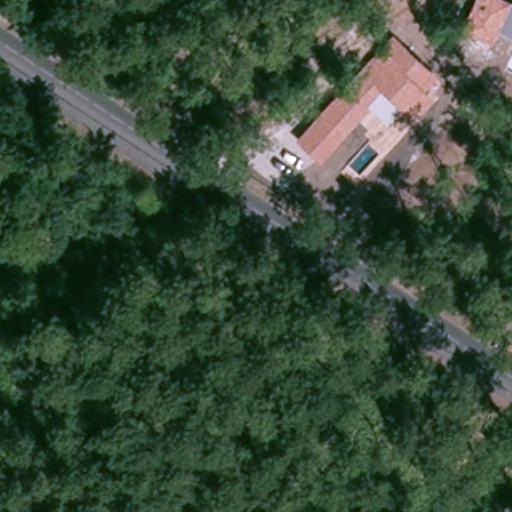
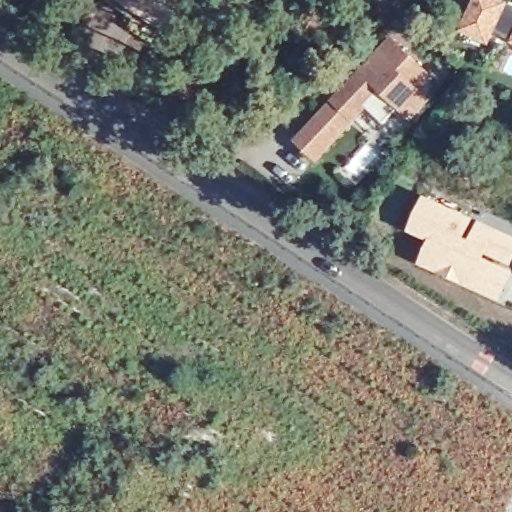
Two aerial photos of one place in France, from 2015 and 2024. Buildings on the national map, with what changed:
new [(166,33),(118,0),(187,0),(166,33)]
unchanged [(512,4),(512,36),(498,31),(490,46),(460,32),(474,0),(503,0),(512,4)]
unchanged [(392,35),(438,79),(426,91),(435,100),(415,121),(401,110),(386,124),(369,110),(322,162),(295,137),(392,35)]
new [(424,195),(512,235),(512,267),(512,268),(512,273),(498,303),(417,265),(427,242),(407,231),(424,195)]

